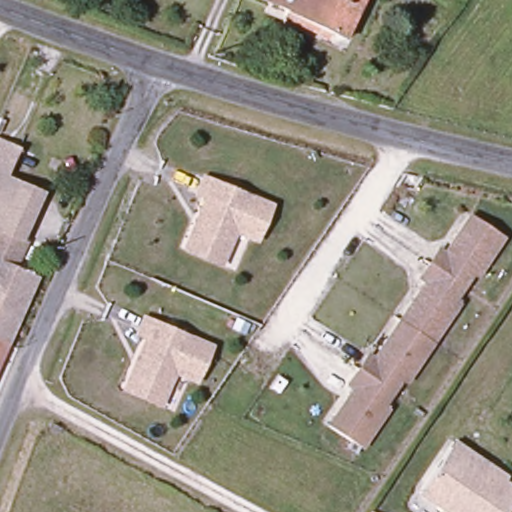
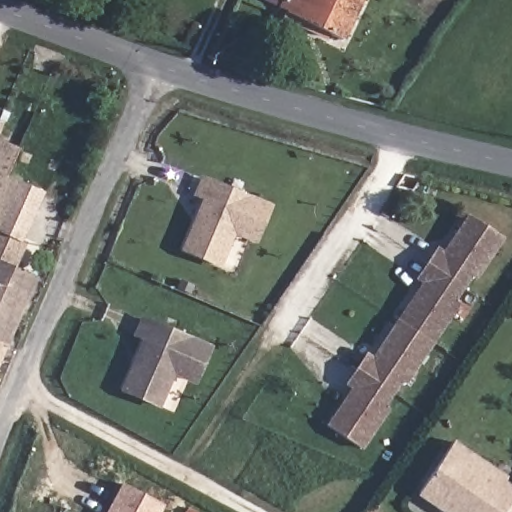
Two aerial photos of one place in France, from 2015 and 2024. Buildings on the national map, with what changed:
unchanged [(273,15),(260,8),(264,0),(282,0),(273,15)]
unchanged [(337,48),(273,15),(282,0),(361,0),(337,48)]
unchanged [(1,237),(0,237),(0,148),(21,156),(10,185),(48,200),(17,281),(27,285),(0,356),(0,240),(1,237)]
unchanged [(267,211),(253,246),(239,240),(232,237),(220,268),(216,273),(182,260),(202,209),(194,205),(204,182),(261,208),(267,211)]
unchanged [(441,257),(467,219),(500,239),(473,280),(468,278),(452,302),(456,306),(402,386),(397,383),(381,408),(384,411),(358,451),(326,431),(352,392),(346,387),(364,358),(371,363),(422,285),(417,282),(436,255),(441,257)]
unchanged [(141,383),(166,394),(157,413),(122,398),(146,347),(138,342),(145,323),(173,336),(141,383)]
unchanged [(210,352),(196,386),(172,377),(166,394),(141,383),(173,336),(210,352)]
unchanged [(448,450),(512,495),(512,512),(446,512),(419,494),(448,450)]
new [(111,512),(125,485),(162,505),(158,512),(111,512)]
unchanged [(373,512),(370,512),(371,511),(373,512)]

